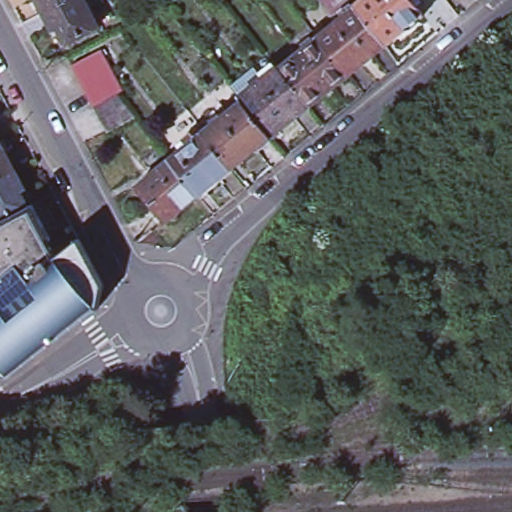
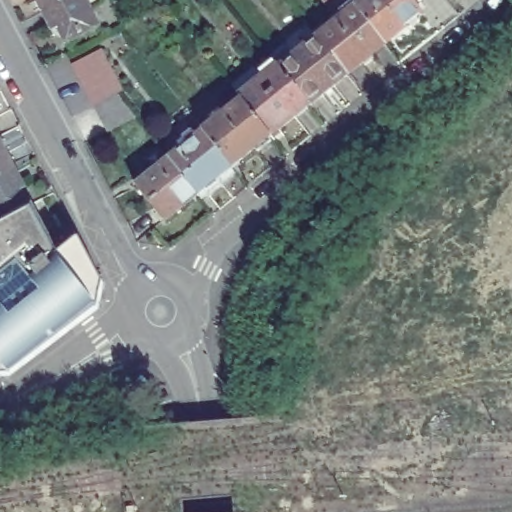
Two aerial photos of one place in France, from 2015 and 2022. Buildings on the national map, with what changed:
unchanged [(37,0),(67,0),(64,2),(43,12),(37,0)]
unchanged [(99,6),(91,11),(100,27),(67,44),(59,27),(54,32),(43,12),(64,2),(67,0),(95,0),(99,6)]
unchanged [(317,44),(340,26),(321,2),(323,0),(359,0),(350,6),(384,51),(347,82),(334,65),(317,44)]
unchanged [(385,50),(355,10),(369,0),(419,0),(412,5),(424,22),(420,24),(420,30),(410,37),(405,35),(385,50)]
unchanged [(269,145),(270,148),(257,159),(254,157),(233,173),(205,137),(243,107),(239,102),(277,72),(279,74),(304,55),(300,51),(310,42),(314,47),(317,44),(334,65),(347,82),(309,112),(272,142),(269,145)]
unchanged [(100,121),(94,108),(92,105),(86,94),(79,81),(72,66),(100,50),(109,66),(115,79),(122,92),(117,95),(127,107),(137,119),(107,134),(100,121)]
unchanged [(220,187),(207,197),(205,196),(199,201),(170,165),(188,151),(184,146),(192,138),(196,144),(205,137),(233,173),(232,174),(233,177),(220,187)]
unchanged [(24,187),(20,190),(28,207),(32,205),(37,215),(60,256),(80,240),(103,283),(98,310),(12,375),(0,375),(0,138),(15,170),(24,187)]
unchanged [(170,165),(199,201),(164,227),(137,192),(170,165)]

